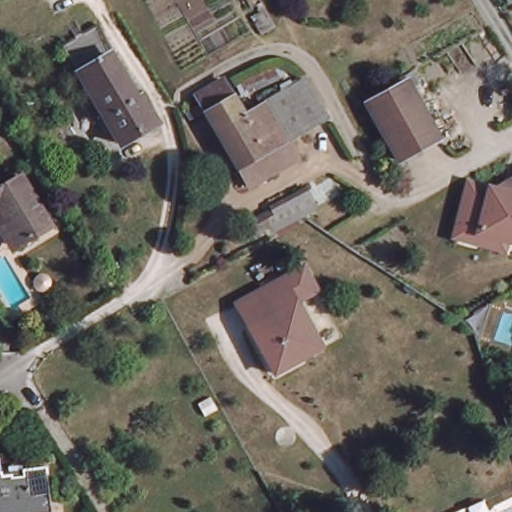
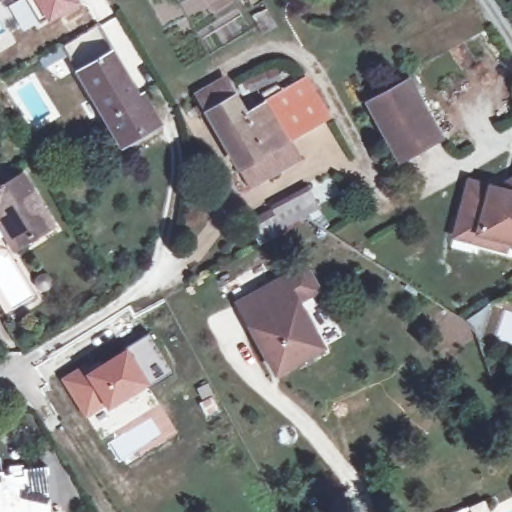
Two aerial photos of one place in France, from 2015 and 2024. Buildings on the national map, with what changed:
new [(2,5),(0,1),(0,0),(10,0),(2,5)]
new [(80,4),(47,22),(46,19),(39,23),(26,0),(78,0),(80,4)]
unchanged [(122,145),(79,74),(77,75),(60,45),(98,23),(113,54),(110,55),(137,99),(142,97),(157,124),(122,145)]
unchanged [(277,171),(251,187),(240,168),(239,169),(198,97),(224,82),(244,115),(306,77),(328,116),(289,140),(299,156),(276,169),(277,171)]
unchanged [(408,81),(439,139),(400,161),(369,104),(408,81)]
unchanged [(2,211),(0,213),(0,187),(27,172),(55,221),(20,242),(2,211)]
unchanged [(452,226),(465,182),(504,193),(506,180),(512,176),(512,236),(502,234),(499,249),(474,242),(450,235),(452,226)]
unchanged [(316,292),(295,303),(321,349),(275,375),(248,328),(237,305),(262,291),(303,268),(316,292)]
new [(149,334),(172,372),(150,386),(149,383),(110,407),(108,405),(85,416),(61,380),(80,366),(86,375),(127,348),(149,334)]
unchanged [(2,476),(12,475),(12,471),(47,468),(52,512),(0,512),(0,473),(1,472),(2,476)]
unchanged [(471,512),(456,512),(469,506),(471,512)]
unchanged [(62,512),(59,512),(62,511),(62,512)]

